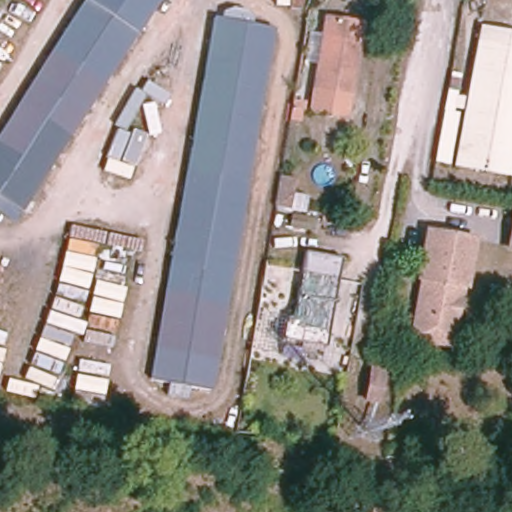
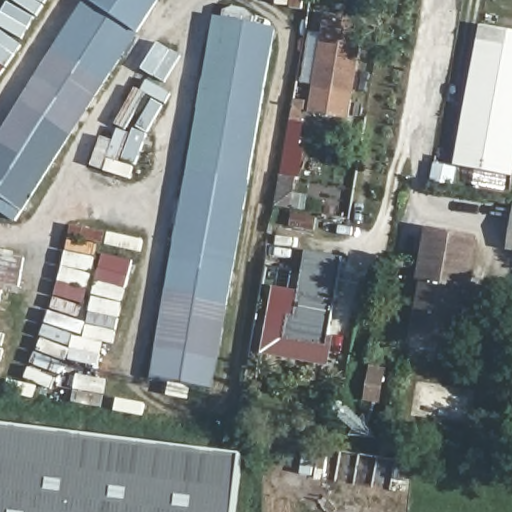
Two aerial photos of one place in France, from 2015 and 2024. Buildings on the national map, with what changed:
unchanged [(0,212),(0,129),(85,0),(157,0),(12,220),(0,212)]
unchanged [(306,112),(312,87),(325,13),(362,20),(348,94),(346,117),(306,112)]
unchanged [(271,25),(208,385),(147,375),(156,329),(211,15),(271,25)]
unchanged [(512,32),(512,174),(457,164),(482,27),(512,32)]
unchanged [(512,212),(512,251),(507,251),(512,212)]
unchanged [(475,240),(467,289),(463,288),(461,301),(455,302),(453,311),(458,317),(454,339),(447,344),(439,342),(434,336),(415,332),(423,281),(420,280),(428,232),(475,240)]
unchanged [(289,318),(295,319),(300,292),(307,252),(343,258),(328,336),(327,347),(285,339),(289,318)]
new [(275,287),(300,292),(295,319),(289,318),(285,339),(327,347),(328,336),(335,337),(330,366),(262,353),(275,287)]
unchanged [(367,402),(373,368),(386,371),(381,405),(367,402)]
new [(244,455),(236,512),(0,512),(0,424),(244,455)]

